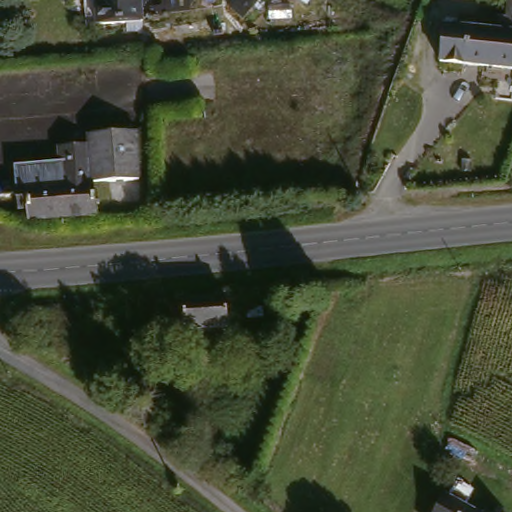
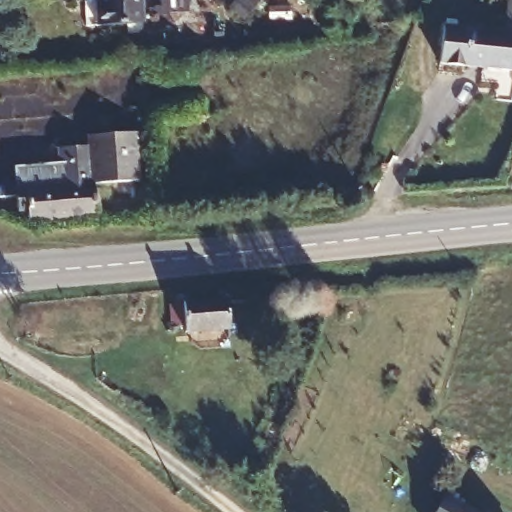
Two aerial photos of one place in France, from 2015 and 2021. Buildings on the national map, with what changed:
unchanged [(93,27),(91,7),(95,8),(95,0),(136,0),(137,25),(93,27)]
unchanged [(444,30),(494,35),(496,23),(509,24),(511,0),(512,0),(512,76),(440,69),(444,30)]
unchanged [(63,164),(64,149),(93,146),(94,136),(140,133),(144,181),(98,183),(101,217),(34,223),(33,211),(24,212),(22,196),(4,198),(4,185),(21,183),(19,168),(63,164)]
unchanged [(223,305),(225,334),(184,338),(180,310),(223,305)]
unchanged [(436,512),(448,492),(484,512),(436,512)]

